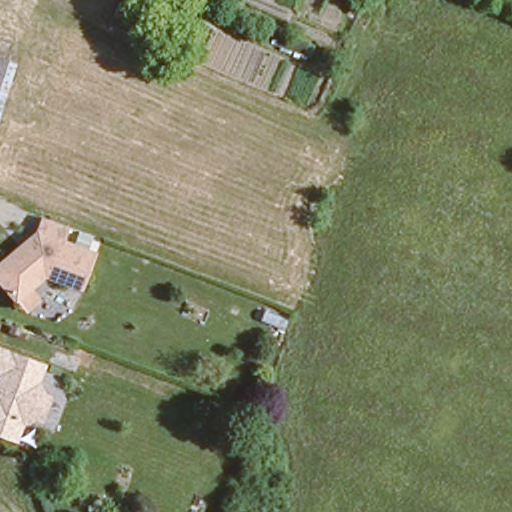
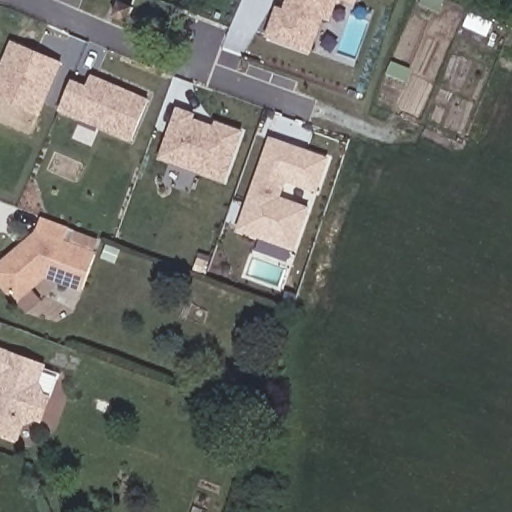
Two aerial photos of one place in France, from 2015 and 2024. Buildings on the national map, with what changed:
unchanged [(130,12),(118,7),(121,0),(143,0),(145,1),(140,16),(130,12)]
new [(264,37),(275,7),(283,11),(287,0),(353,0),(351,5),(339,1),(331,22),(325,20),(313,55),(264,37)]
new [(11,41),(63,62),(40,117),(0,99),(0,67),(11,41)]
new [(58,112),(72,78),(85,84),(90,74),(150,99),(131,143),(58,112)]
new [(224,183),(157,159),(175,106),(196,114),(194,119),(215,126),(217,120),(243,130),(241,135),(224,183)]
new [(294,252),(236,231),(269,136),(330,157),(317,194),(286,183),(281,197),(309,210),(294,252)]
unchanged [(3,300),(0,295),(0,261),(31,237),(36,221),(62,230),(56,246),(89,257),(77,292),(40,280),(7,305),(3,300)]
unchanged [(44,360),(37,380),(46,394),(40,415),(18,428),(15,438),(0,433),(0,343),(44,360)]

